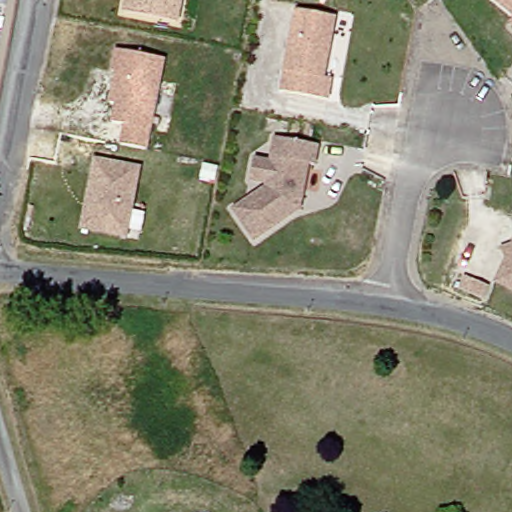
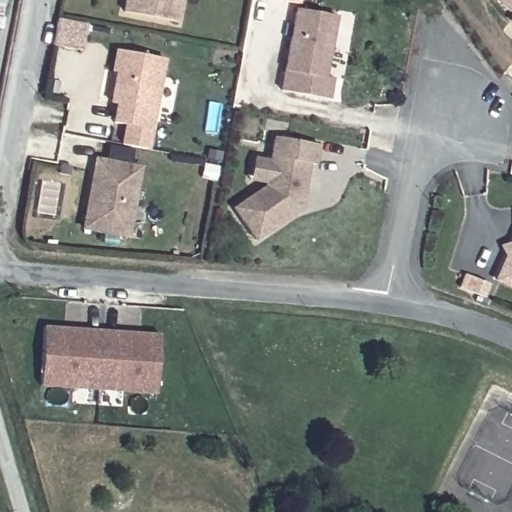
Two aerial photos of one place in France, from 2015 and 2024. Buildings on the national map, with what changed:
unchanged [(175,22),(121,12),(125,0),(179,0),(175,22)]
unchanged [(496,0),(512,0),(512,14),(496,0)]
unchanged [(335,13),(327,75),(332,76),(329,97),(281,87),(296,6),(335,13)]
unchanged [(124,132),(113,130),(116,112),(110,111),(116,80),(111,79),(116,58),(163,66),(146,157),(121,152),(124,132)]
unchanged [(320,142),(316,163),(311,163),(304,207),(259,238),(237,205),(267,185),(269,180),(252,179),(257,156),(272,158),(277,136),(320,142)]
unchanged [(136,166),(124,234),(81,227),(93,159),(136,166)]
new [(154,395),(40,387),(44,326),(158,335),(154,395)]

